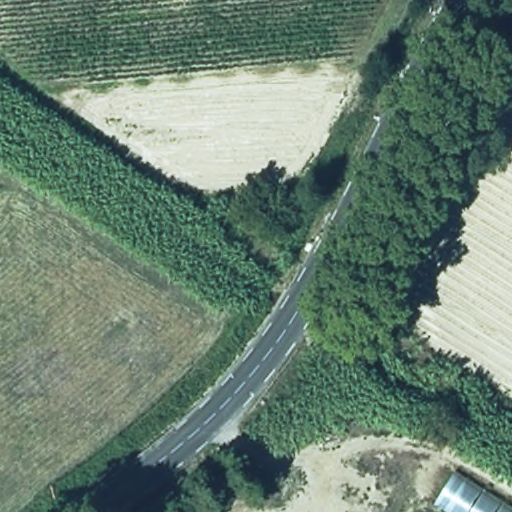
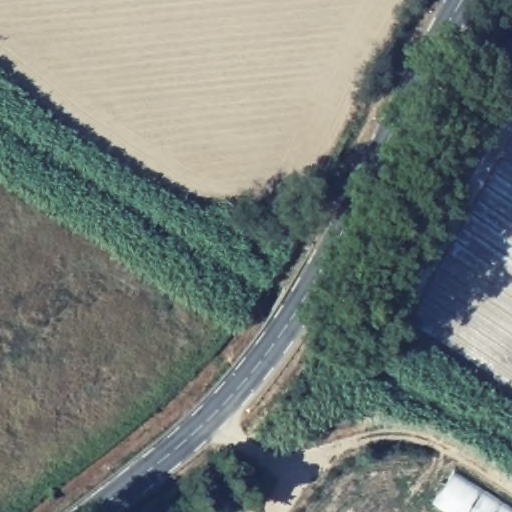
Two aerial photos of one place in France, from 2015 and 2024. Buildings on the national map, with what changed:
unchanged [(512,506),(512,512),(430,512),(453,469),(512,506)]

